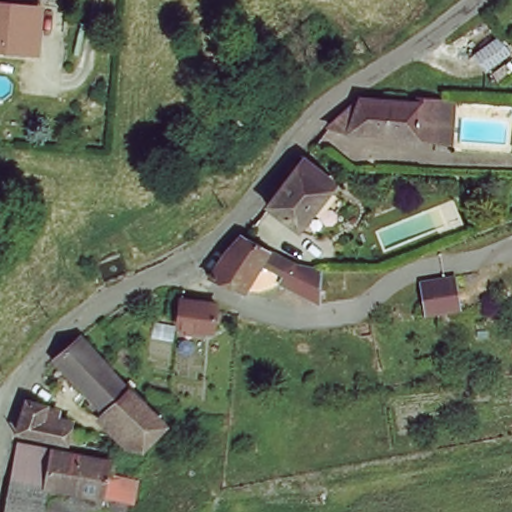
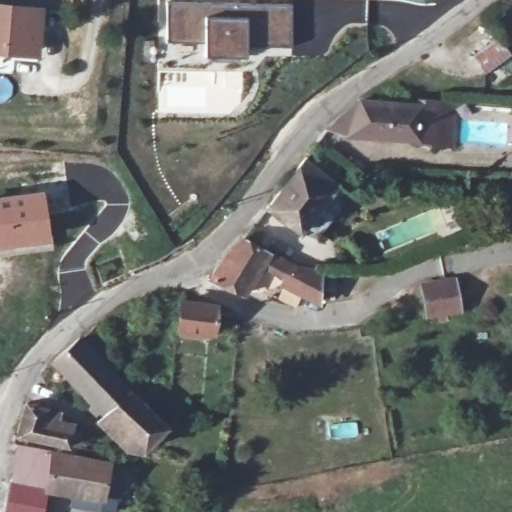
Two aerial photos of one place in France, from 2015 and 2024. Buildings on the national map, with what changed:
new [(245,42),(244,55),(204,54),(205,42),(165,40),(167,2),(290,4),(289,44),(245,42)]
unchanged [(0,58),(0,8),(42,11),(42,51),(20,51),(21,59),(0,58)]
unchanged [(443,142),(348,135),(335,129),(340,123),(364,106),(425,110),(426,100),(442,101),(443,142)]
new [(512,145),(512,150),(511,149),(512,145)]
unchanged [(291,162),(338,200),(309,236),(288,224),(260,200),(291,162)]
new [(43,189),(50,240),(0,248),(0,194),(43,189)]
unchanged [(271,297),(256,299),(241,297),(207,284),(222,260),(239,239),(275,257),(319,270),(310,299),(274,290),(273,290),(271,297)]
unchanged [(452,285),(456,313),(424,317),(420,290),(452,285)]
unchanged [(208,343),(178,338),(185,296),(214,312),(213,320),(208,343)]
unchanged [(147,451),(140,452),(52,363),(78,342),(113,384),(164,433),(147,451)]
unchanged [(8,441),(17,408),(40,413),(38,428),(61,434),(60,450),(8,441)]
unchanged [(7,490),(14,455),(98,473),(100,488),(114,492),(110,512),(95,508),(95,512),(65,512),(65,502),(46,498),(43,512),(6,512),(11,491),(7,490)]

